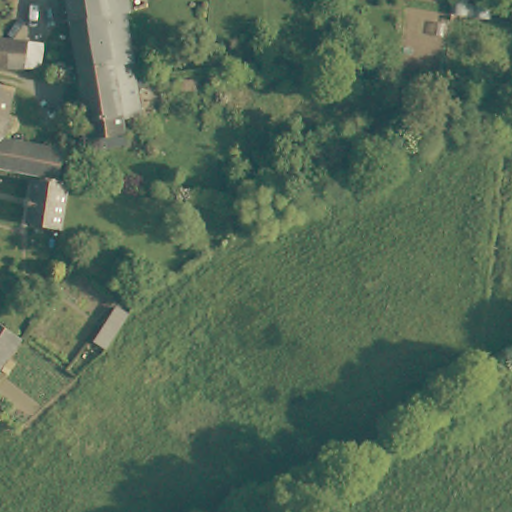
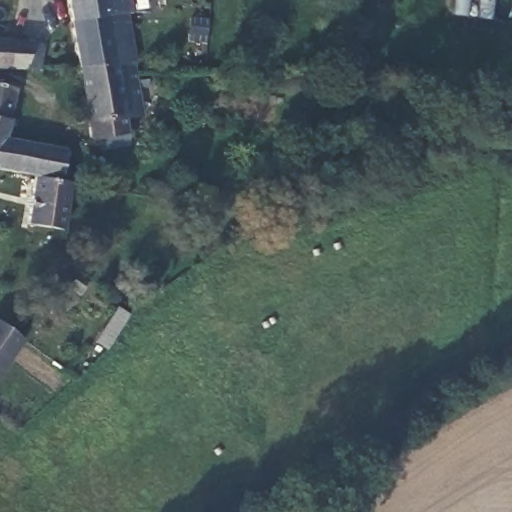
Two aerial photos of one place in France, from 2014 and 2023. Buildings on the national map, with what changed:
unchanged [(137,50),(133,51),(79,61),(68,0),(130,0),(131,3),(129,3),(137,50)]
unchanged [(1,36),(29,39),(26,70),(0,70),(0,41),(1,36)]
unchanged [(128,135),(100,141),(98,131),(91,132),(79,61),(133,51),(134,59),(140,97),(146,132),(128,135)]
unchanged [(64,174),(64,172),(59,171),(57,181),(39,178),(0,171),(0,81),(12,83),(11,92),(7,116),(9,116),(6,136),(80,150),(72,176),(64,174)]
unchanged [(63,231),(29,225),(39,178),(57,181),(73,184),(63,231)]
unchanged [(132,301),(111,335),(100,329),(121,295),(132,301)]
unchanged [(26,343),(14,360),(0,381),(0,326),(26,343)]

